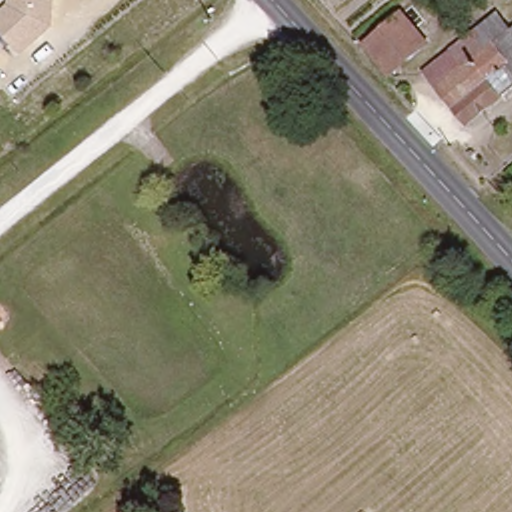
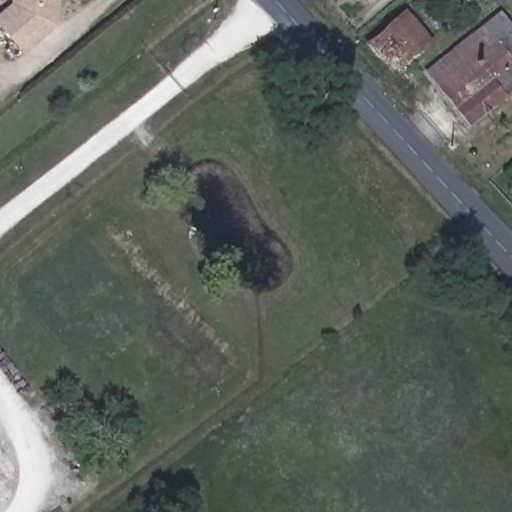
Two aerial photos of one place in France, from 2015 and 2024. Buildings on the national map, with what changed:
unchanged [(60,0),(58,29),(26,55),(0,26),(0,14),(12,4),(12,0),(60,0)]
unchanged [(430,40),(391,73),(367,43),(406,11),(430,40)]
unchanged [(512,29),(512,85),(467,121),(427,71),(500,13),(512,29)]

